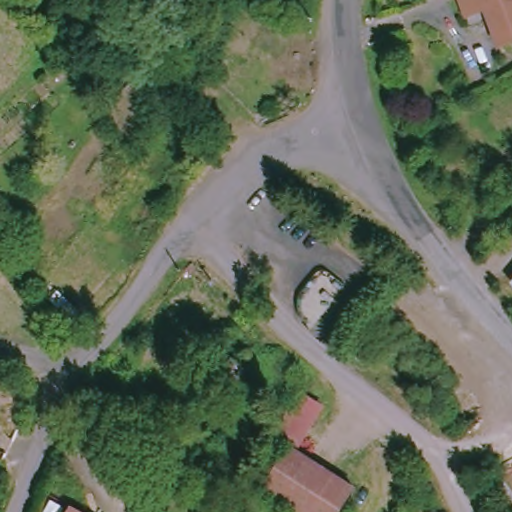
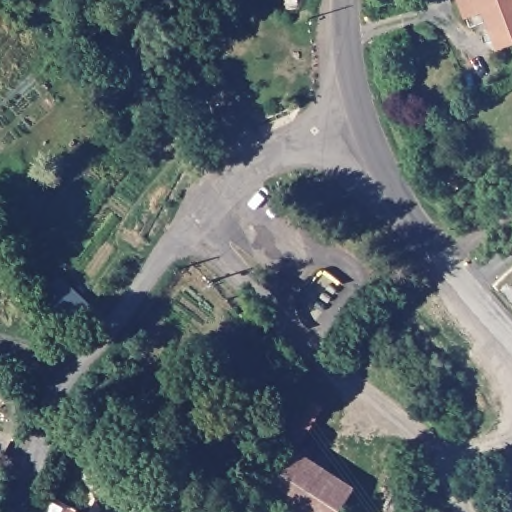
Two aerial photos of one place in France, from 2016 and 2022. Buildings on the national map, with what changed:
unchanged [(498,50),(485,15),(466,21),(457,0),(512,0),(512,44),(498,50)]
unchanged [(215,401),(201,387),(228,355),(244,370),(215,401)]
unchanged [(296,449),(272,435),(296,391),(321,405),(296,449)]
unchanged [(302,512),(266,491),(288,447),(355,483),(339,512),(302,512)]
unchanged [(67,512),(65,512),(66,511),(67,512)]

